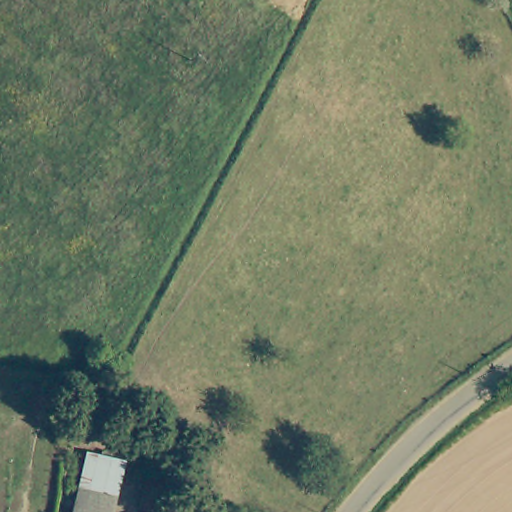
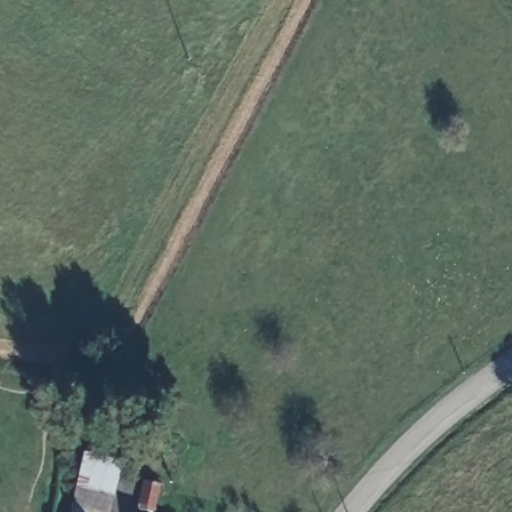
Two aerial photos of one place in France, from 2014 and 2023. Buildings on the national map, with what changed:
unchanged [(79,508),(74,506),(80,487),(84,488),(88,489),(97,458),(99,453),(125,461),(124,466),(115,498),(110,512),(77,512),(79,508)]
unchanged [(146,497),(152,474),(166,478),(159,500),(146,497)]
unchanged [(140,511),(142,512),(140,512),(140,511)]

